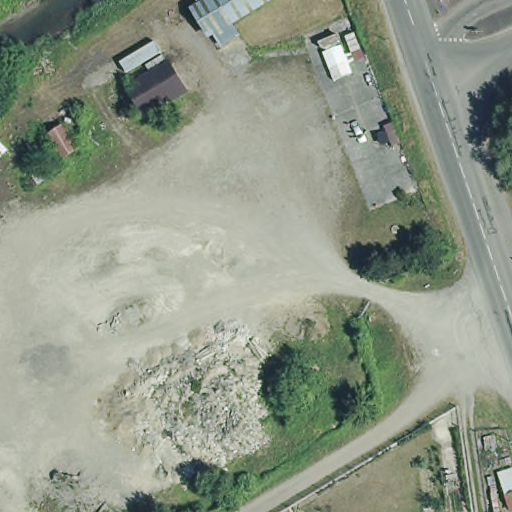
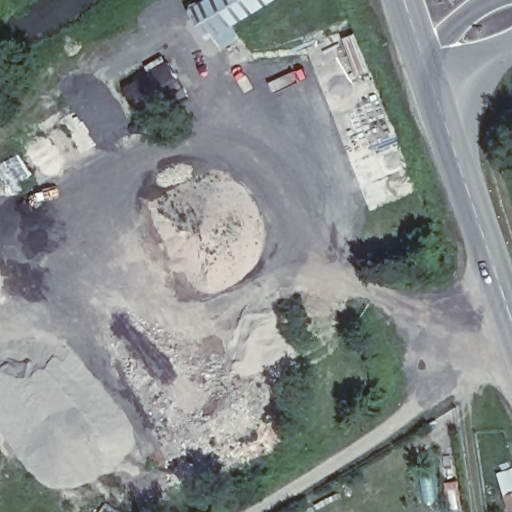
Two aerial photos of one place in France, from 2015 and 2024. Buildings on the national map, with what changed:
unchanged [(223,22),(216,26),(202,0),(258,0),(238,13),(244,25),(229,34),(223,22)]
unchanged [(172,61),(188,90),(146,114),(131,85),(172,61)]

